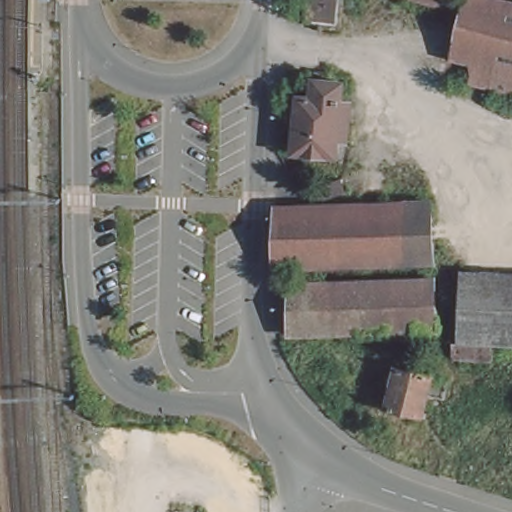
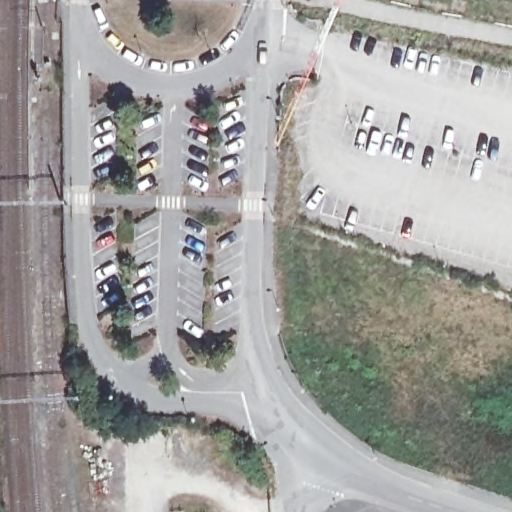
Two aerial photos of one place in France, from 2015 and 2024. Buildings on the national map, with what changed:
demolished [(335,29),(307,25),(309,0),(339,0),(335,29)]
demolished [(441,6),(420,0),(443,0),(441,6)]
demolished [(512,2),(512,93),(468,82),(472,65),(452,59),(465,0),(503,0),(512,2)]
demolished [(312,103),(314,84),(342,86),(341,105),(350,106),(347,143),(336,143),(335,161),(294,157),(298,102),(312,103)]
demolished [(431,207),(433,265),(281,273),(273,273),(276,212),(431,207)]
demolished [(298,287),(443,283),(445,332),(360,336),(300,338),(292,338),(281,339),(282,288),(291,287),(298,287)]
demolished [(450,383),(445,401),(427,396),(421,418),(388,410),(397,370),(450,383)]

